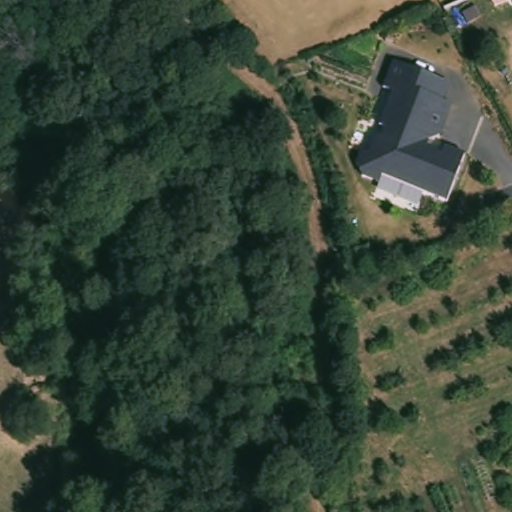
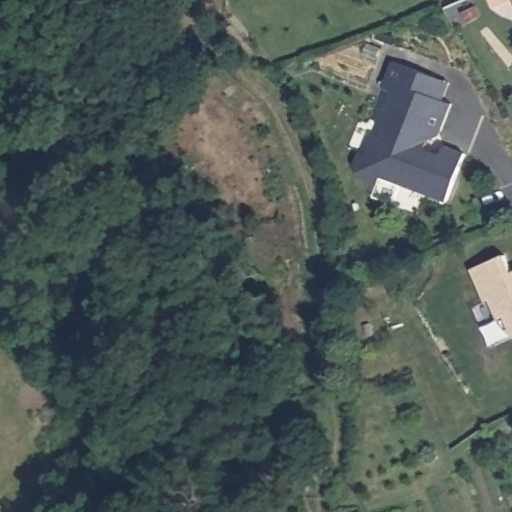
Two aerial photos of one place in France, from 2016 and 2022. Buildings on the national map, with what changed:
unchanged [(496,6),(493,0),(509,0),(496,6)]
unchanged [(448,82),(441,100),(450,102),(435,144),(465,156),(447,202),(381,178),(378,185),(361,179),(353,165),(357,152),(369,154),(376,137),(382,139),(385,129),(378,126),(391,90),(382,87),(392,62),(448,82)]
new [(512,276),(512,333),(506,319),(500,322),(491,303),(487,305),(474,278),(506,262),(512,276)]

